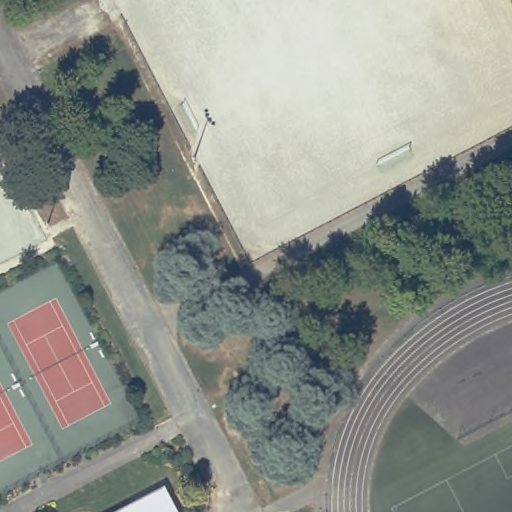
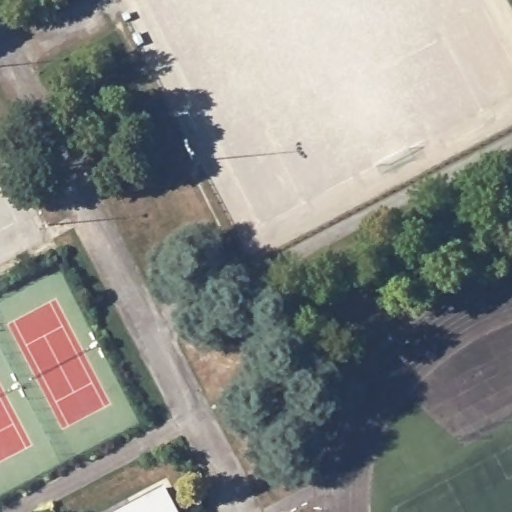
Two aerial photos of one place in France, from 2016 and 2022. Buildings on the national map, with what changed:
unchanged [(181,512),(108,512),(166,483),(181,512)]

